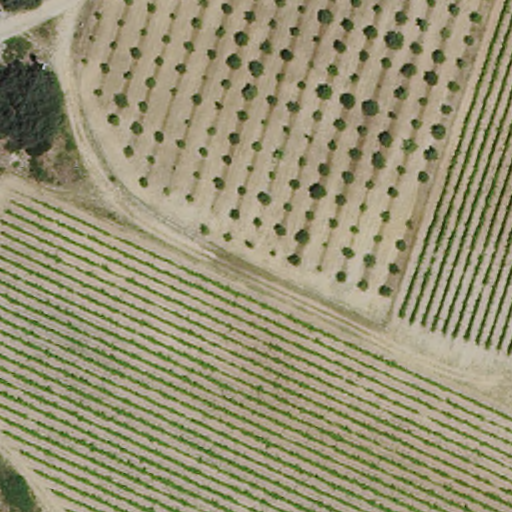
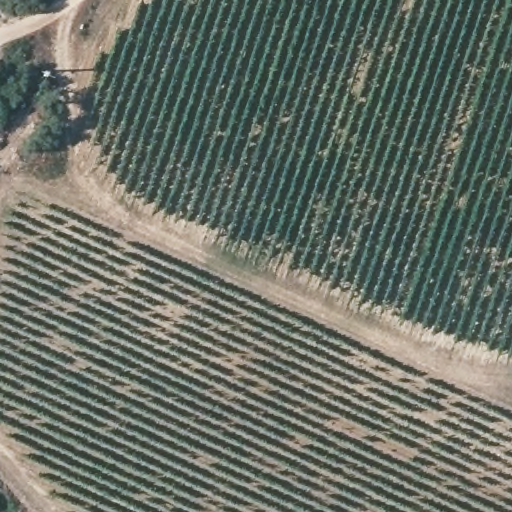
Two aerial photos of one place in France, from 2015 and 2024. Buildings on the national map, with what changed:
[]

